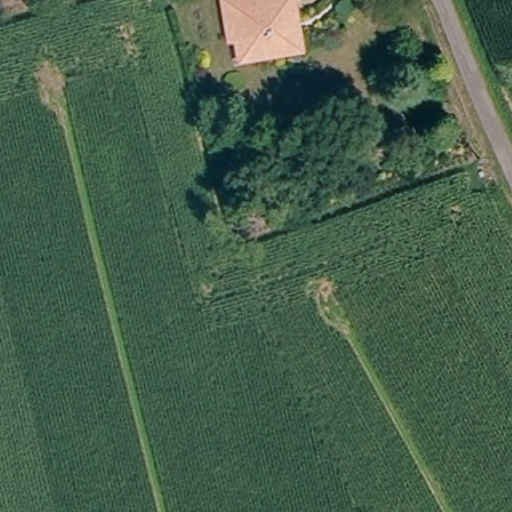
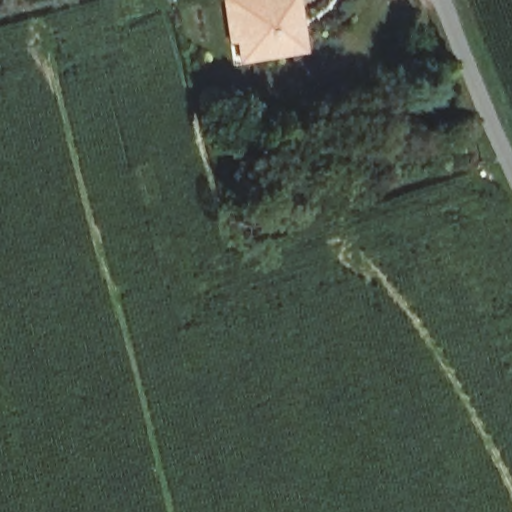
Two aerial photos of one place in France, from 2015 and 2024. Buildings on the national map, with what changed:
unchanged [(307,48),(263,61),(258,45),(239,50),(225,9),(252,0),(258,0),(260,6),(281,0),(293,0),(307,48)]

